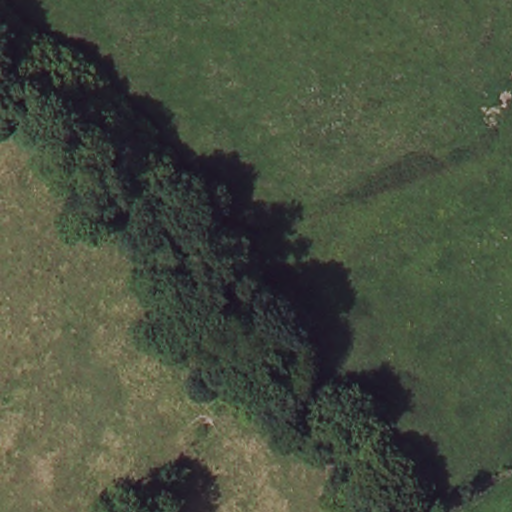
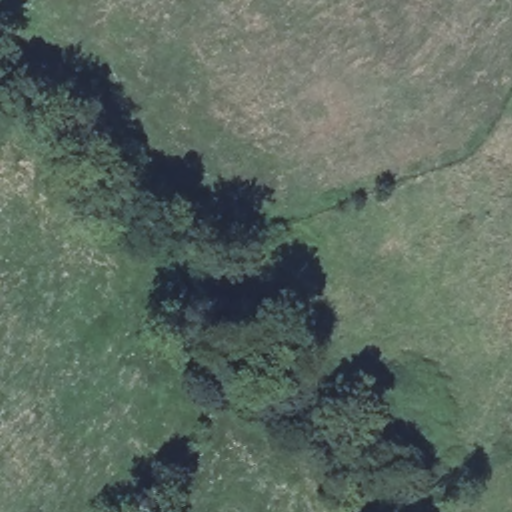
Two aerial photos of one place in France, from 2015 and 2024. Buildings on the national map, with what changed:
[]

